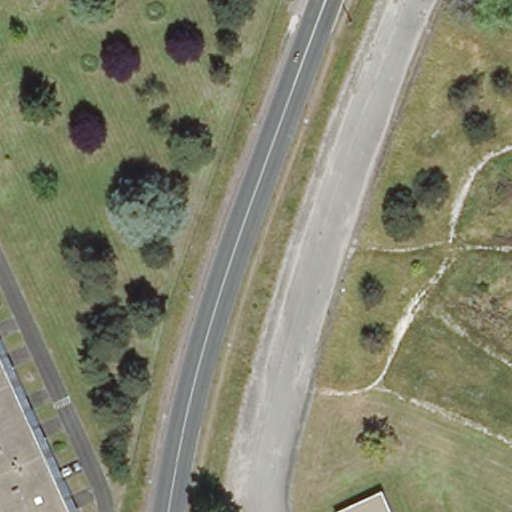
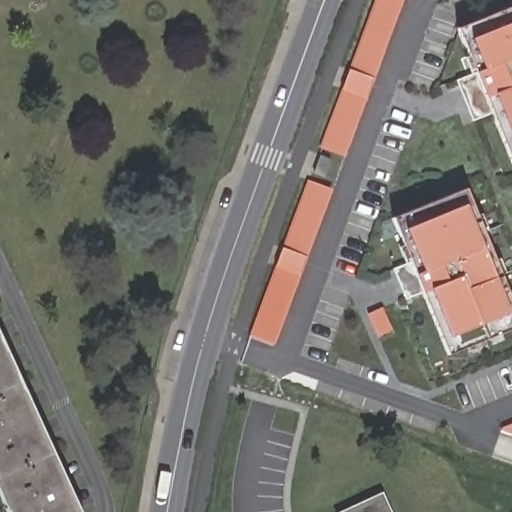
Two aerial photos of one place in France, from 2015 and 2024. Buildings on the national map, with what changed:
new [(345,157),(321,147),(376,0),(403,0),(345,157)]
new [(512,6),(512,161),(458,27),(512,6)]
new [(333,189),(275,345),(251,336),(310,180),(333,189)]
new [(394,217),(467,189),(512,299),(512,329),(450,354),(394,217)]
unchanged [(79,512),(6,512),(0,498),(0,336),(79,512)]
unchanged [(387,512),(353,512),(381,499),(387,512)]

